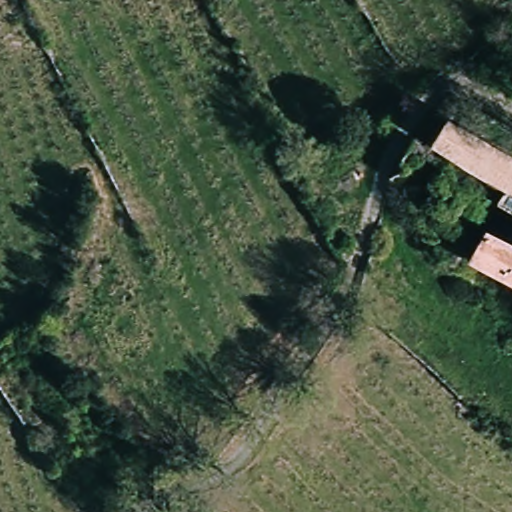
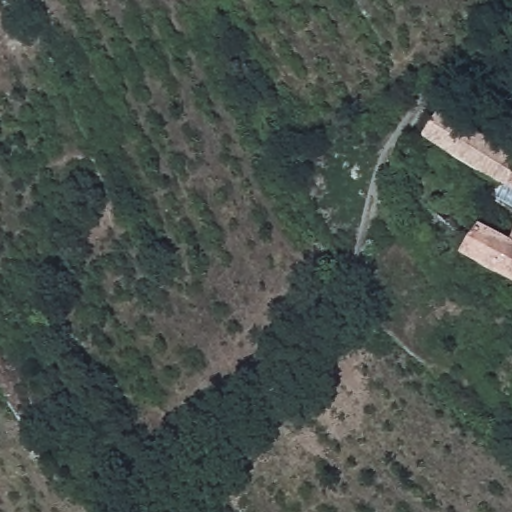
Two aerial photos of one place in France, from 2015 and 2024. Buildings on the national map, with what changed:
unchanged [(498,206),(505,191),(432,150),(447,119),(512,159),(512,213),(498,206)]
unchanged [(482,230),(512,246),(512,285),(466,262),(482,230)]

